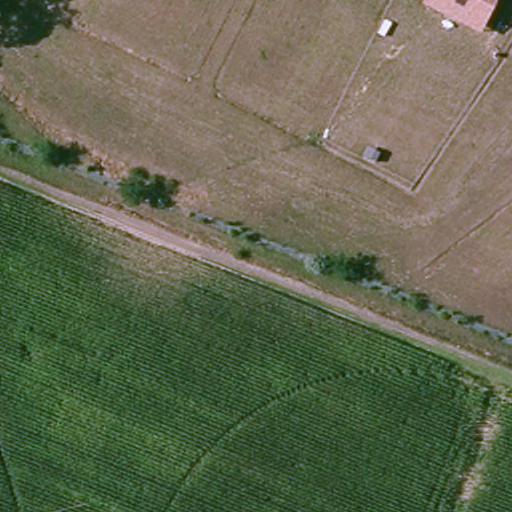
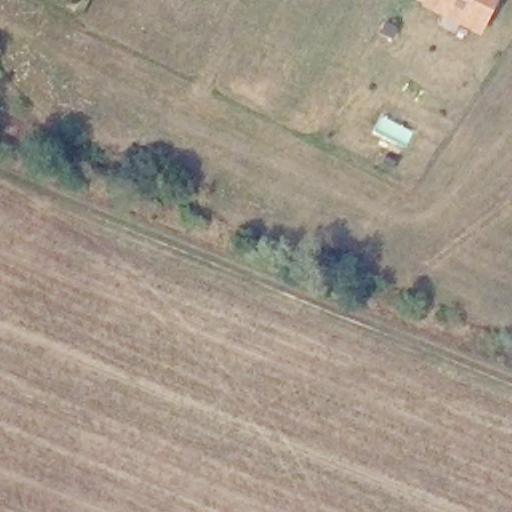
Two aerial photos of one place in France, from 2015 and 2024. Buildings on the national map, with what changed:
unchanged [(424,0),(499,0),(482,35),(422,5),(424,0)]

